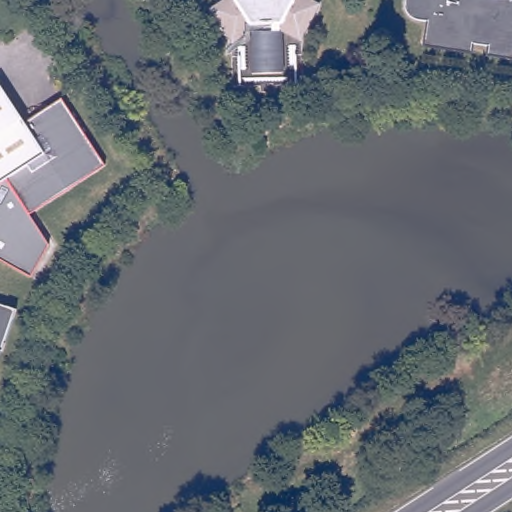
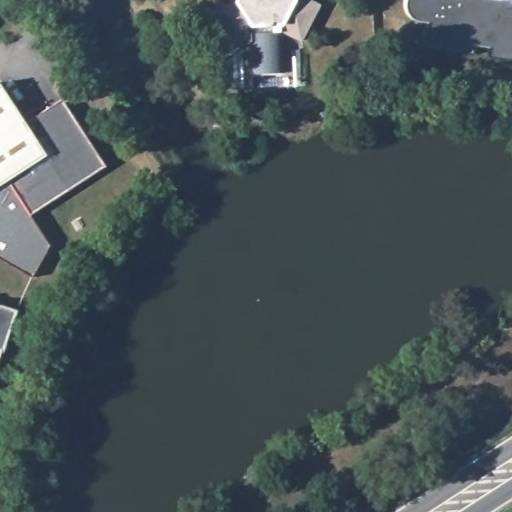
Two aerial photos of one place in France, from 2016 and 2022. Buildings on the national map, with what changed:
unchanged [(300,41),(281,33),(283,72),(251,74),(249,34),(232,45),(207,9),(223,0),(311,0),(319,4),(300,41)]
unchanged [(485,50),(486,46),(472,44),(472,48),(471,55),(421,48),(422,41),(424,21),(418,21),(415,20),(411,18),(407,13),(405,10),(404,5),(405,1),(406,0),(512,0),(512,60),(484,56),(485,50)]
unchanged [(379,78),(374,79),(373,68),(378,67),(379,78)]
unchanged [(24,126),(49,110),(60,103),(69,116),(104,169),(29,219),(48,249),(30,282),(0,265),(0,90),(24,126)]
unchanged [(16,313),(1,356),(0,355),(0,308),(16,313)]

